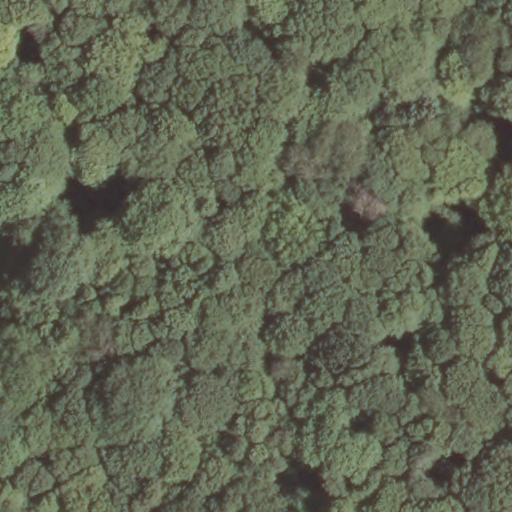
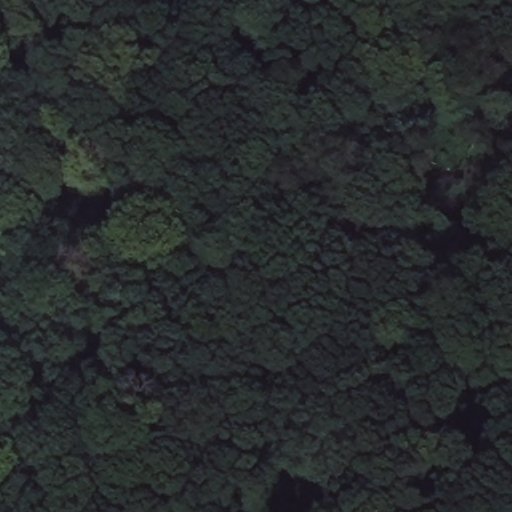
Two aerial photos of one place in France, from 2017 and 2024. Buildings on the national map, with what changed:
unchanged [(182,206),(222,191),(232,216),(192,231),(182,206)]

